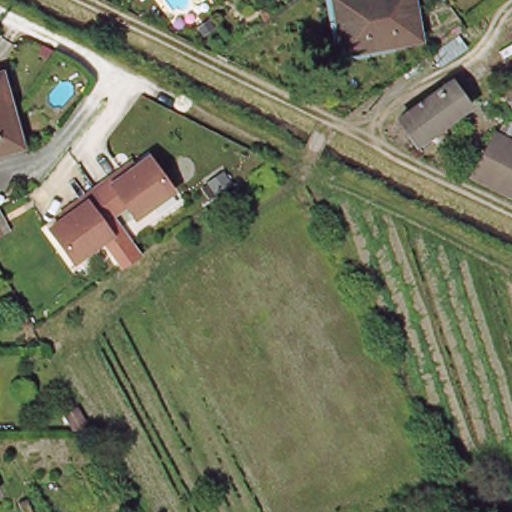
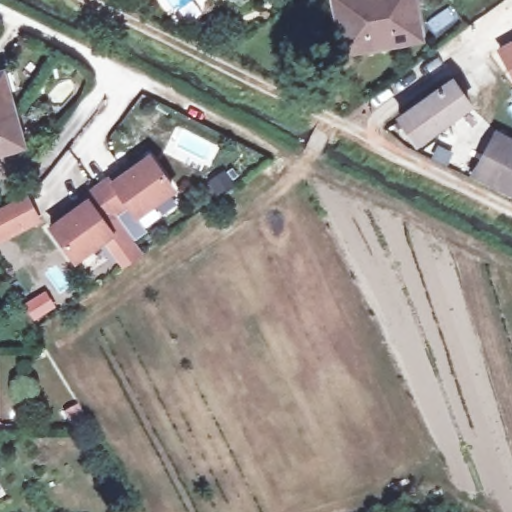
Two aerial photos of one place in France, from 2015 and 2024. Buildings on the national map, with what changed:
unchanged [(336,48),(328,0),(329,0),(407,0),(415,45),(390,50),(337,59),(336,48)]
unchanged [(414,9),(412,0),(426,0),(414,9)]
new [(495,49),(512,39),(512,79),(495,49)]
unchanged [(416,141),(399,118),(452,82),(467,106),(416,141)]
unchanged [(0,155),(0,90),(17,151),(0,155)]
unchanged [(473,178),(497,133),(512,140),(512,198),(473,178)]
unchanged [(132,167),(135,171),(148,161),(172,194),(135,220),(127,208),(113,217),(106,206),(96,193),(122,174),(132,167)]
unchanged [(230,174),(238,187),(223,198),(213,185),(230,174)]
unchanged [(110,238),(74,265),(50,232),(64,222),(61,218),(71,211),(96,193),(106,206),(113,217),(102,226),(110,238)]
new [(38,223),(0,243),(0,215),(27,201),(38,223)]

